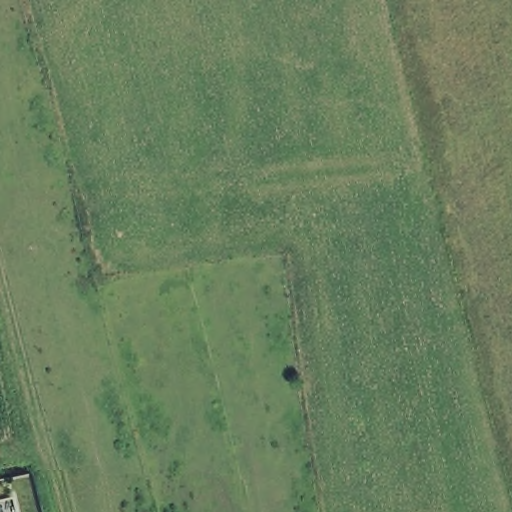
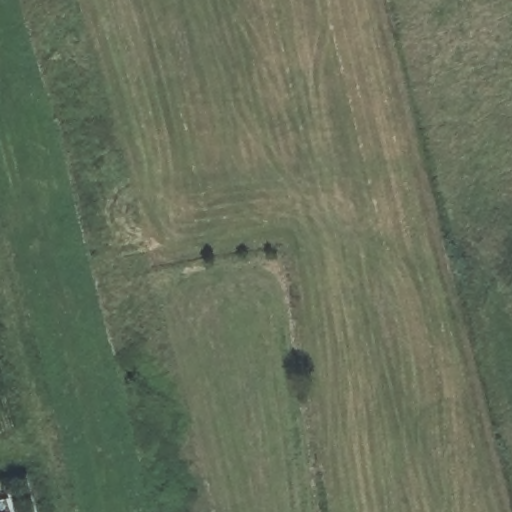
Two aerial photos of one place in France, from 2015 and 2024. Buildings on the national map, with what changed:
unchanged [(5,512),(0,512),(0,499),(3,498),(5,512)]

